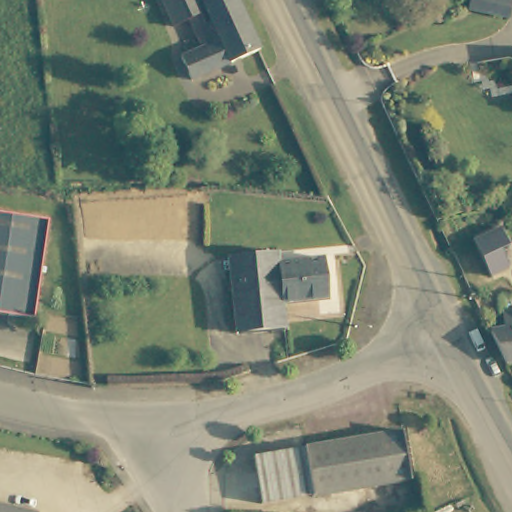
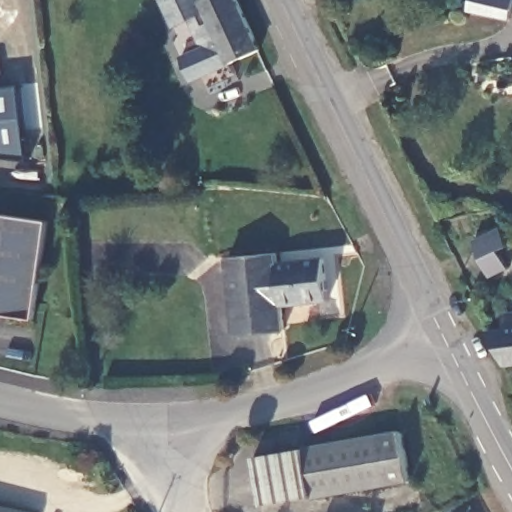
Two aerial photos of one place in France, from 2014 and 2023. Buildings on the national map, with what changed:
unchanged [(176,53),(197,43),(183,16),(169,21),(168,19),(159,0),(235,0),(255,45),(188,77),(176,53)]
unchanged [(468,0),(512,0),(510,13),(467,5),(468,0)]
new [(25,84),(33,161),(0,158),(0,86),(25,84)]
unchanged [(34,318),(0,313),(0,211),(49,218),(34,318)]
unchanged [(470,239),(498,226),(507,244),(498,249),(507,267),(489,276),(470,239)]
unchanged [(233,254),(281,249),(282,259),(330,256),(332,297),(287,302),(289,326),(241,330),(233,254)]
unchanged [(497,345),(488,326),(502,325),(502,311),(512,309),(512,361),(505,362),(497,345)]
unchanged [(313,492),(312,491),(261,498),(254,455),(402,429),(410,476),(313,492)]
unchanged [(39,510),(38,512),(0,512),(0,500),(39,510)]

